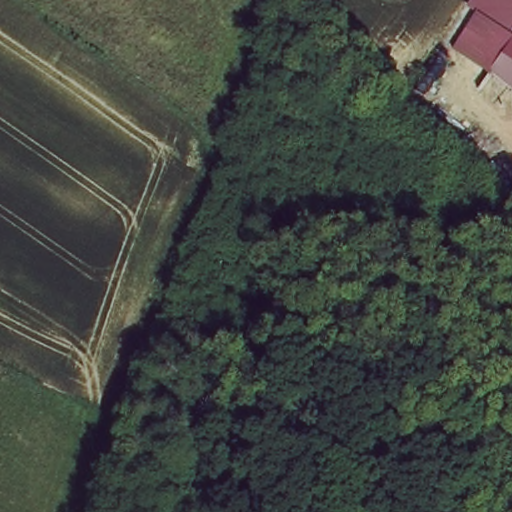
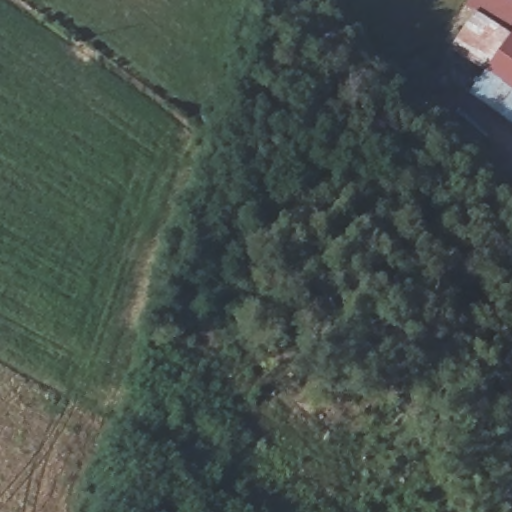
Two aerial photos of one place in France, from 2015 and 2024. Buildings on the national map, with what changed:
unchanged [(506,34),(462,4),(464,0),(512,0),(512,23),(506,34)]
unchanged [(481,68),(506,34),(512,23),(512,90),(481,68)]

